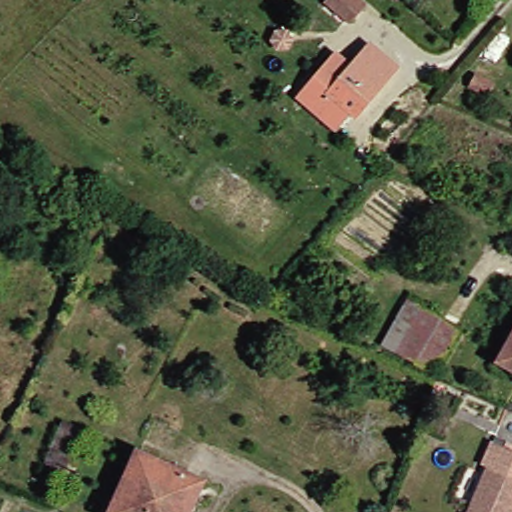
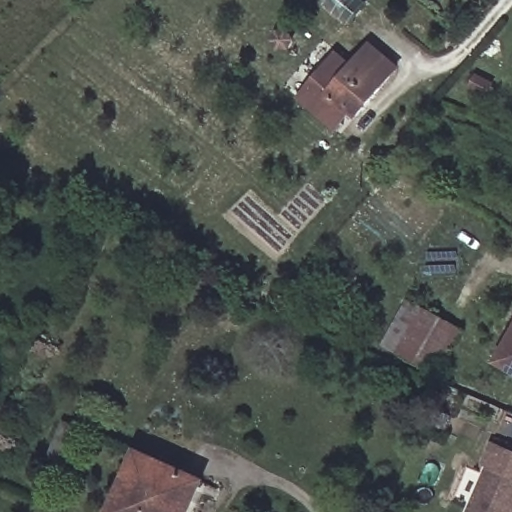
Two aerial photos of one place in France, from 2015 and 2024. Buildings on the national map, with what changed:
unchanged [(327,1),(327,0),(359,0),(365,5),(351,22),(327,1)]
unchanged [(356,111),(341,129),(304,98),(330,68),(343,53),(358,66),(376,44),(403,67),(362,116),(356,111)]
unchanged [(477,76),(493,84),(488,94),(472,87),(477,76)]
unchanged [(436,373),(385,344),(410,300),(461,329),(436,373)]
unchanged [(505,361),(512,348),(512,366),(505,361)]
unchanged [(84,431),(66,473),(48,465),(66,423),(84,431)]
unchanged [(484,465),(494,442),(512,450),(512,512),(470,512),(490,467),(484,465)]
unchanged [(194,512),(119,512),(145,454),(208,482),(194,512)]

